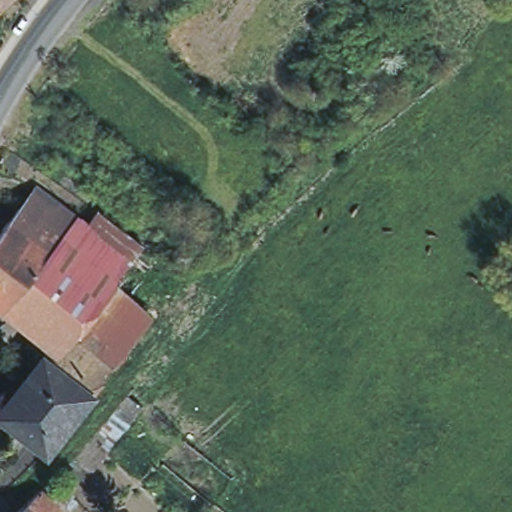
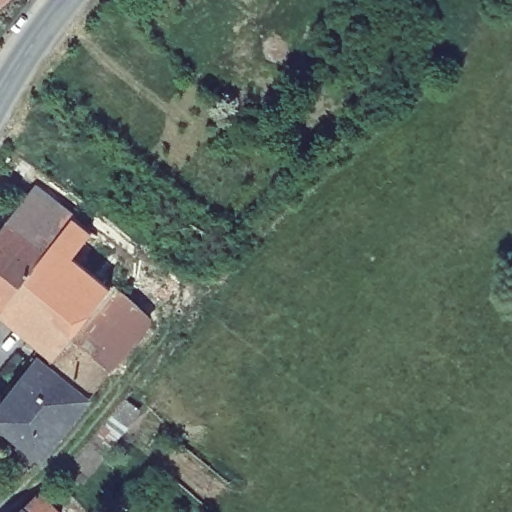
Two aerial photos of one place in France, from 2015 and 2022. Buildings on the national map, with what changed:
unchanged [(29,181),(70,213),(0,300),(0,219),(10,206),(29,181)]
unchanged [(80,221),(92,207),(138,242),(107,281),(75,322),(71,327),(43,362),(34,355),(16,341),(25,328),(0,309),(0,300),(70,213),(80,221)]
unchanged [(124,295),(145,320),(111,360),(75,322),(107,281),(124,295)]
unchanged [(107,364),(85,391),(43,362),(71,327),(107,364)]
unchanged [(6,392),(34,355),(43,362),(85,391),(40,449),(21,435),(25,430),(0,412),(0,410),(10,395),(6,392)]
unchanged [(140,402),(75,482),(55,466),(122,385),(140,402)]
unchanged [(44,495),(61,512),(22,512),(25,510),(44,495)]

